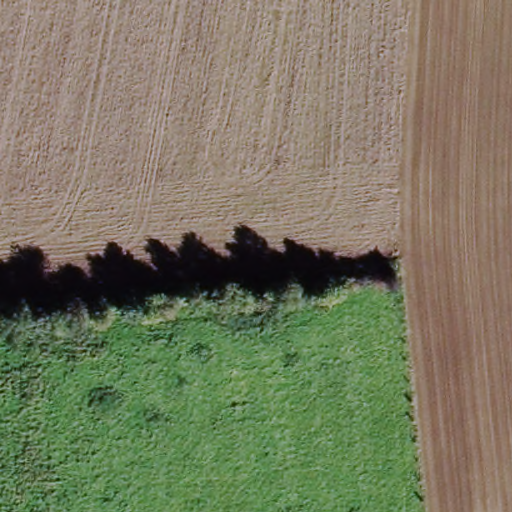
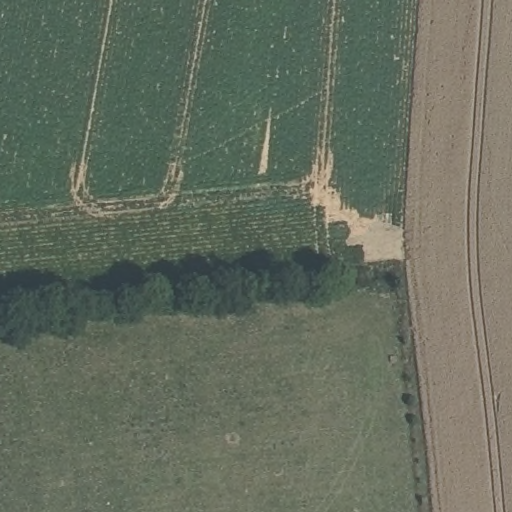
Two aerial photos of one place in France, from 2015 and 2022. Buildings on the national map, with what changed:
[]

